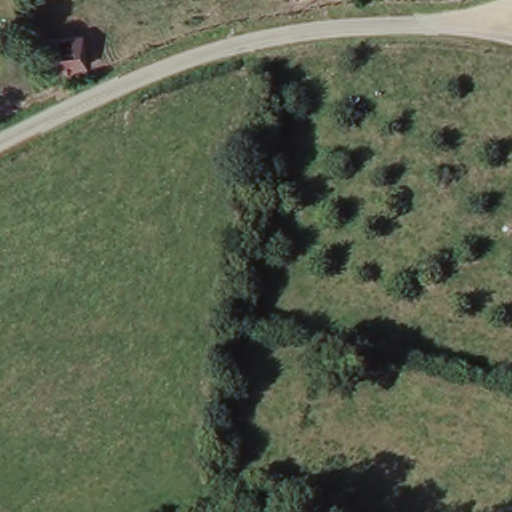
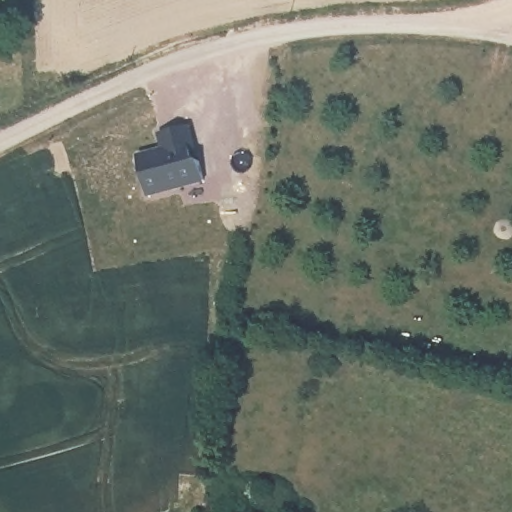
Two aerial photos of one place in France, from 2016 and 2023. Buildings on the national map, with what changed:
unchanged [(82,35),(85,67),(44,72),(40,40),(82,35)]
new [(164,149),(160,134),(189,127),(193,143),(191,143),(194,158),(200,161),(205,181),(148,196),(137,156),(164,149)]

